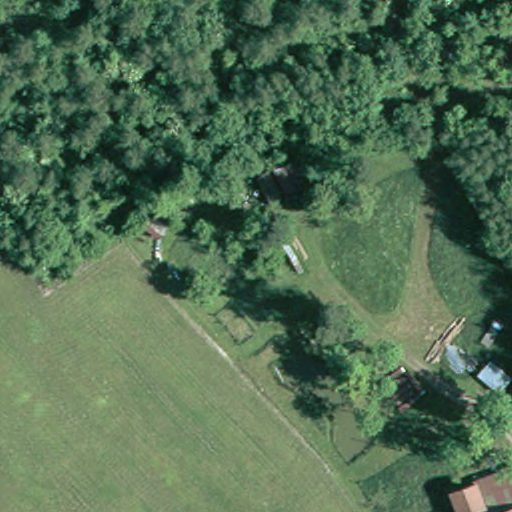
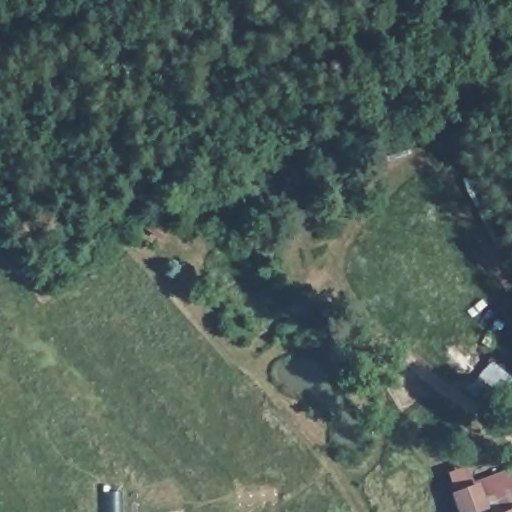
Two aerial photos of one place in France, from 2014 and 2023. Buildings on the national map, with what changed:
unchanged [(512,510),(512,512),(508,512),(512,510)]

